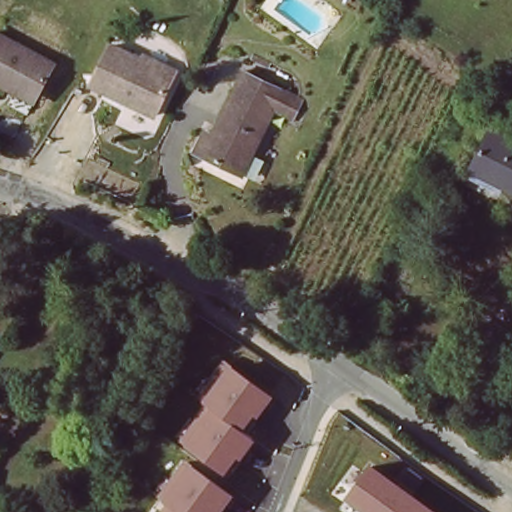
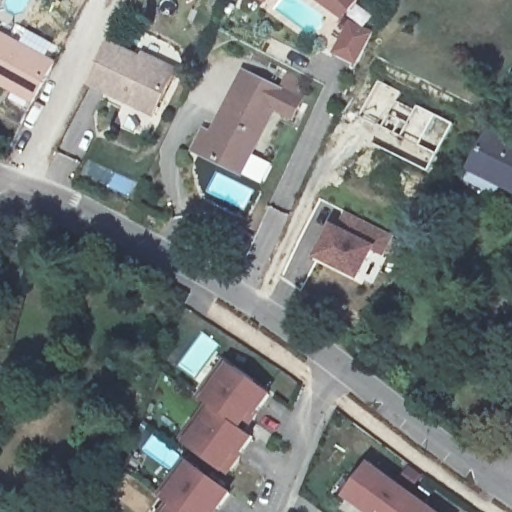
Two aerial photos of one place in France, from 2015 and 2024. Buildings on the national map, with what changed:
new [(312,0),(360,0),(342,24),(312,0)]
new [(349,20),(373,30),(359,65),(334,55),(349,20)]
unchanged [(5,84),(0,82),(0,32),(53,63),(35,94),(32,100),(5,84)]
unchanged [(144,56),(177,70),(174,76),(157,116),(92,88),(110,48),(142,62),(144,56)]
unchanged [(217,129),(245,72),(291,92),(301,97),(294,112),(284,107),(275,103),(243,171),(194,148),(205,124),(217,129)]
new [(399,96),(395,104),(413,113),(415,109),(451,127),(436,158),(361,121),(377,84),(399,96)]
unchanged [(470,164),(492,127),(512,138),(512,189),(470,164)]
new [(392,240),(383,260),(374,256),(361,283),(321,264),(335,235),(341,238),(350,219),(392,240)]
unchanged [(182,440),(210,405),(204,399),(231,364),(274,397),(248,432),(255,438),(229,476),(182,440)]
unchanged [(221,512),(161,512),(168,503),(159,495),(187,461),(233,495),(221,512)]
unchanged [(437,512),(363,512),(344,498),(372,463),(437,512)]

